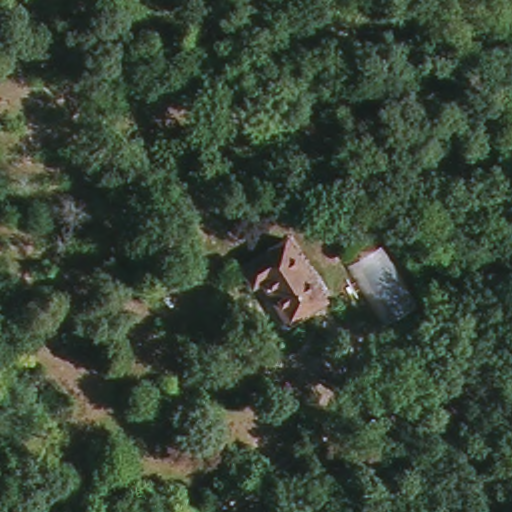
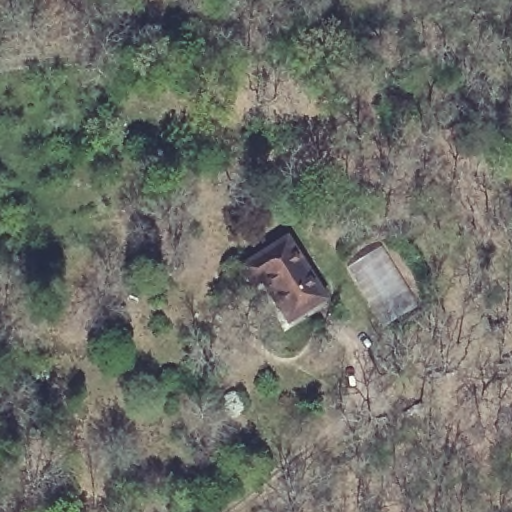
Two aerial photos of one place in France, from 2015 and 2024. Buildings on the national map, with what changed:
unchanged [(331,301),(294,325),(267,283),(259,288),(246,269),(291,240),(304,259),(331,301)]

